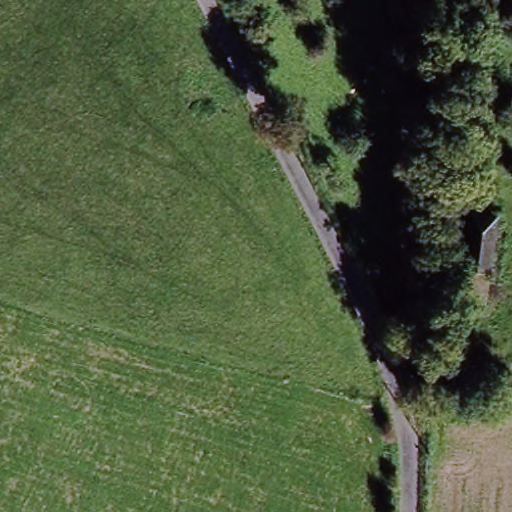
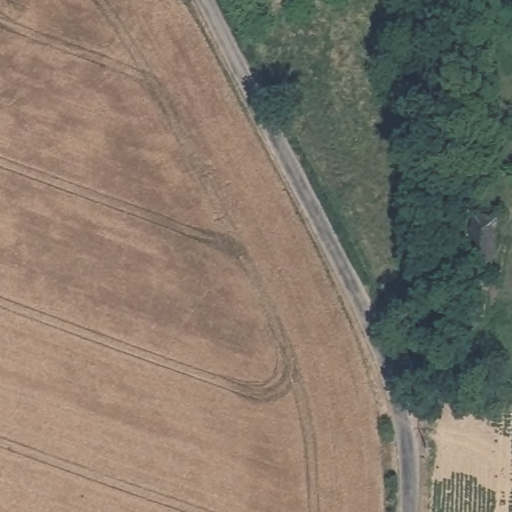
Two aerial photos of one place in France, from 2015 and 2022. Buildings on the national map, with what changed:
unchanged [(393,22),(393,0),(432,0),(433,23),(393,22)]

